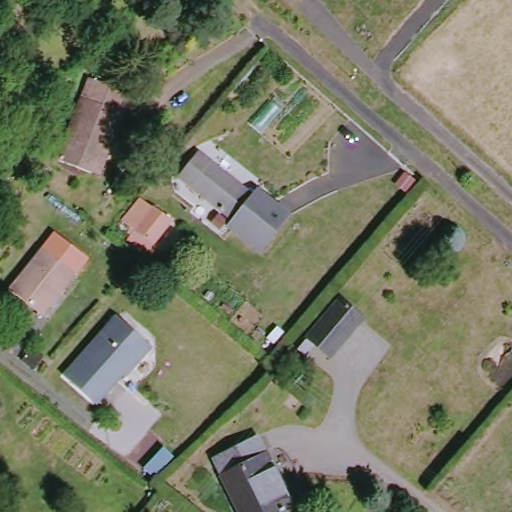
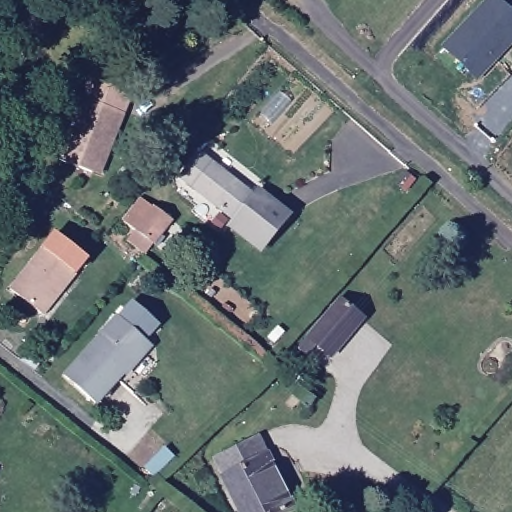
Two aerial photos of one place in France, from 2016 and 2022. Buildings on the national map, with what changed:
new [(486,0),(499,0),(512,12),(512,45),(477,82),(442,47),(486,0)]
unchanged [(70,160),(102,79),(142,95),(122,146),(110,176),(104,174),(70,160)]
unchanged [(237,216),(194,181),(214,157),(256,192),(237,216)]
unchanged [(261,185),(292,211),(262,246),(232,221),(237,216),(256,192),(261,185)]
unchanged [(145,198),(156,208),(157,206),(173,220),(148,251),(130,238),(137,230),(125,221),(145,198)]
unchanged [(47,247),(79,272),(47,313),(16,287),(47,247)]
unchanged [(350,297),(372,317),(338,354),(324,341),(314,351),(307,345),(350,297)]
unchanged [(125,315),(154,339),(155,349),(143,365),(136,359),(129,368),(132,371),(105,403),(74,377),(125,315)]
unchanged [(222,458),(266,435),(302,508),(293,512),(248,512),(222,458)]

